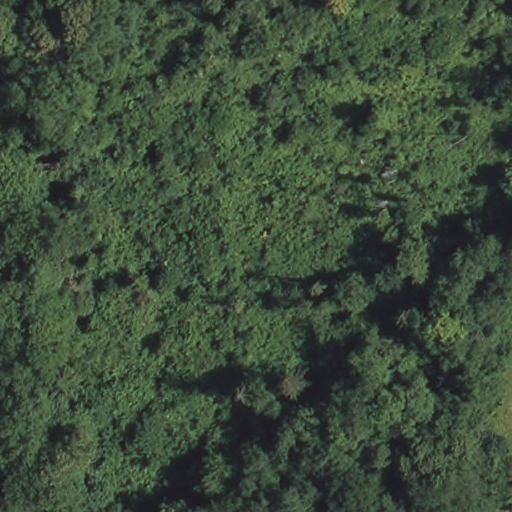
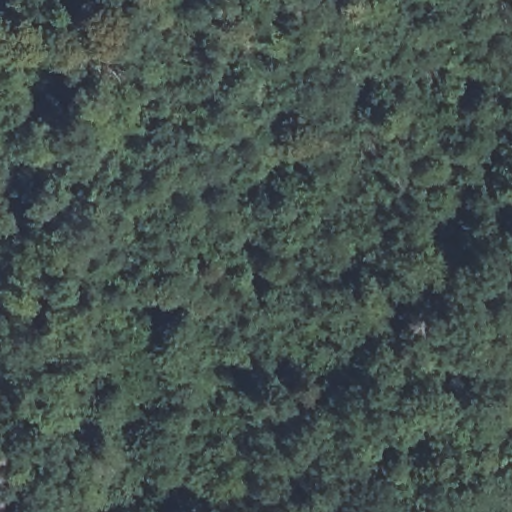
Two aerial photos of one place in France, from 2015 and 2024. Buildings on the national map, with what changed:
unchanged [(82,100),(80,124),(80,153),(37,153),(39,99),(82,100)]

